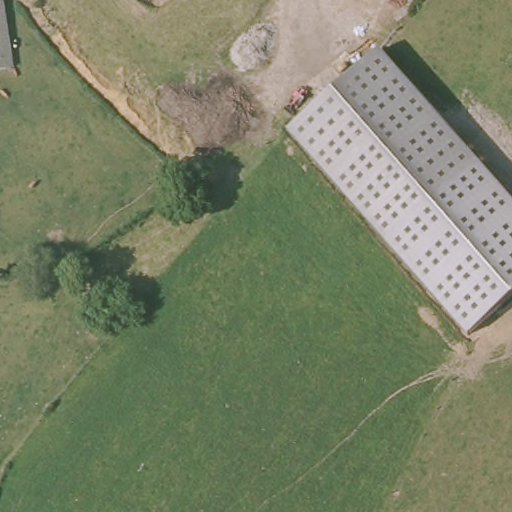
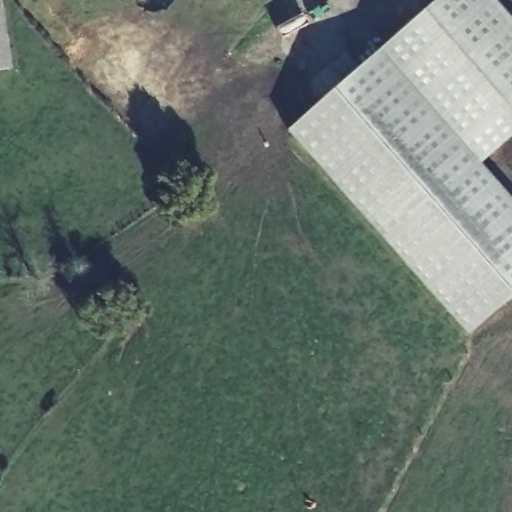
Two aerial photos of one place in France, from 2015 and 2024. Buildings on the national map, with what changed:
new [(494,0),(512,20),(512,136),(480,164),(380,50),(437,0),(494,0)]
unchanged [(0,74),(0,50),(2,74),(0,74)]
unchanged [(512,200),(512,297),(468,338),(286,133),(380,50),(512,200)]

